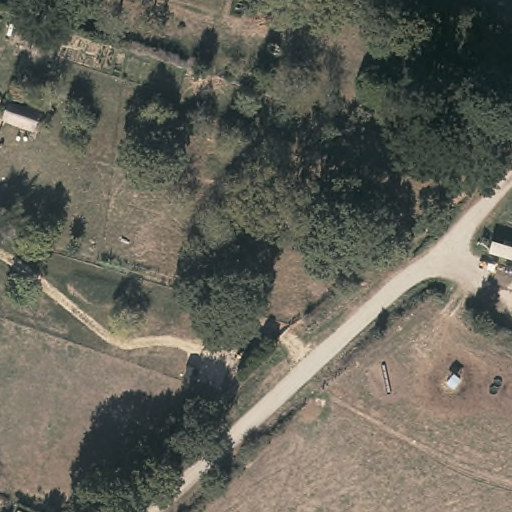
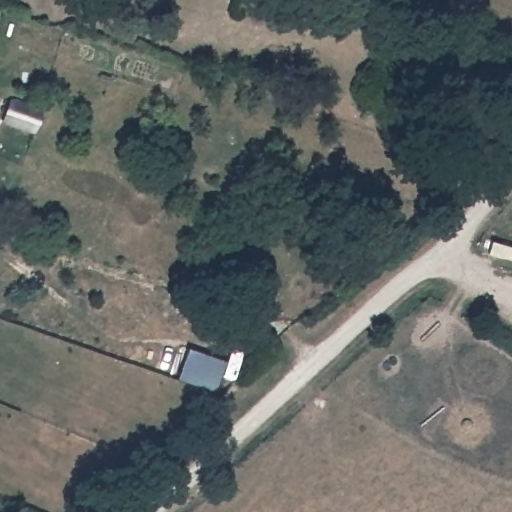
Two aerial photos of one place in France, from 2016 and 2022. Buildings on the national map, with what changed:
unchanged [(327,4),(318,0),(328,0),(327,4)]
unchanged [(0,23),(0,9),(4,10),(0,23)]
unchanged [(44,111),(38,129),(5,119),(11,100),(44,111)]
new [(215,390),(178,377),(187,348),(226,361),(215,390)]
unchanged [(59,512),(50,512),(46,510),(51,501),(61,507),(59,512)]
unchanged [(18,512),(20,508),(29,512),(18,512)]

